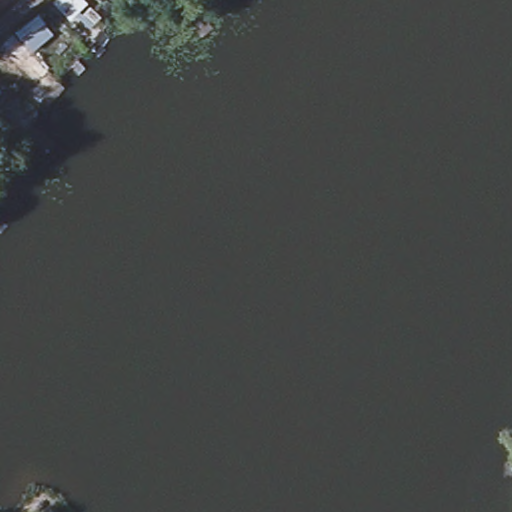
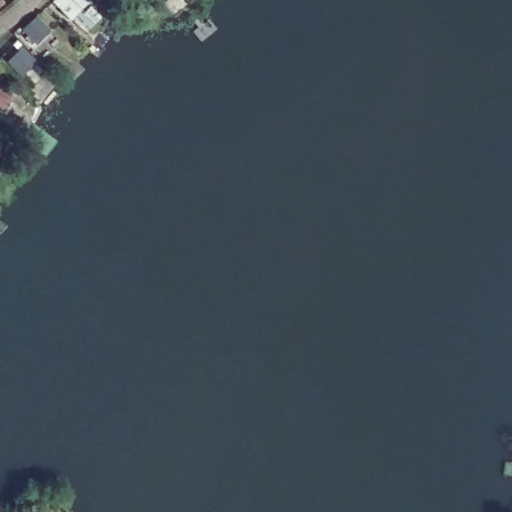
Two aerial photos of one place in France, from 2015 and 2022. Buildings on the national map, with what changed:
unchanged [(84,0),(87,4),(69,23),(52,1),(53,0),(84,0)]
unchanged [(15,31),(40,14),(53,37),(30,55),(56,82),(42,98),(0,55),(0,43),(15,31)]

